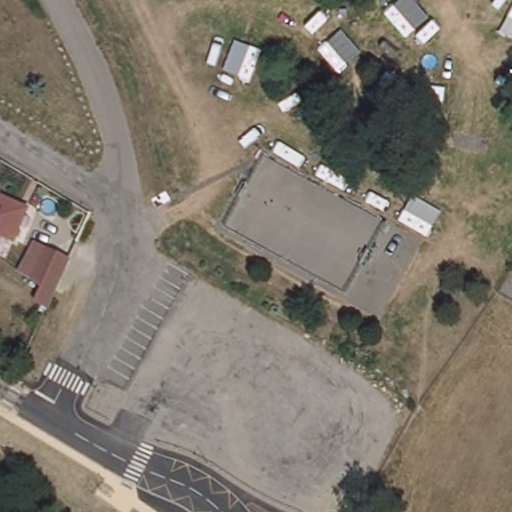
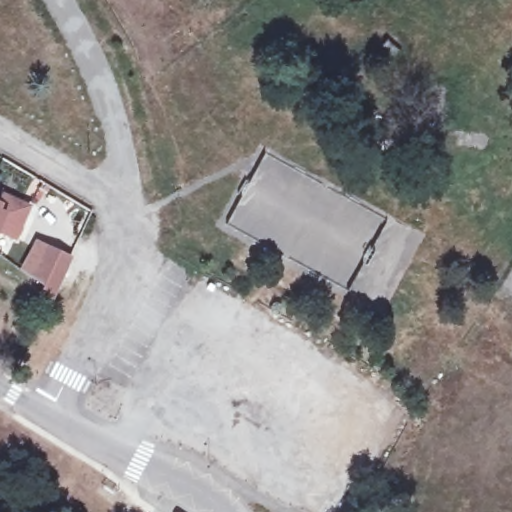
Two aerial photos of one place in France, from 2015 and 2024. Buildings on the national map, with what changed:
unchanged [(395,123),(383,141),(366,133),(375,111),(395,123)]
unchanged [(2,201),(30,212),(16,243),(0,236),(0,205),(2,201)]
unchanged [(38,300),(45,285),(35,277),(50,245),(73,256),(57,291),(50,305),(38,300)]

